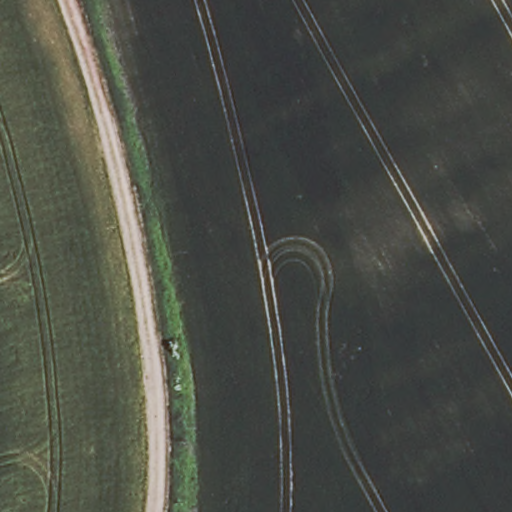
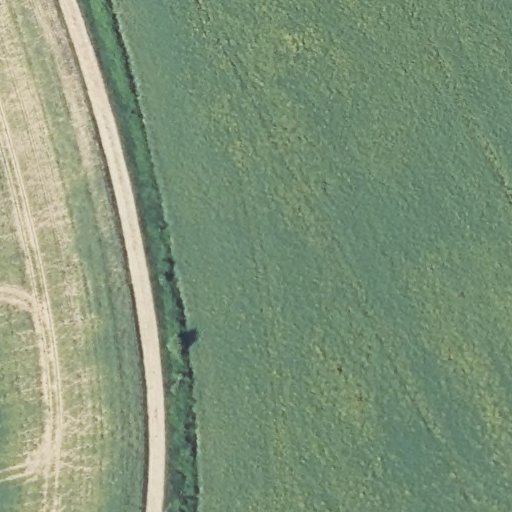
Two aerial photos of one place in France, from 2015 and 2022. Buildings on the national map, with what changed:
unchanged [(245,46),(258,74),(238,83),(225,55),(245,46)]

